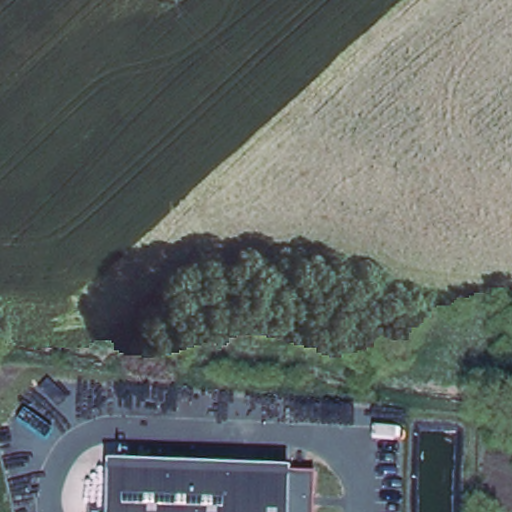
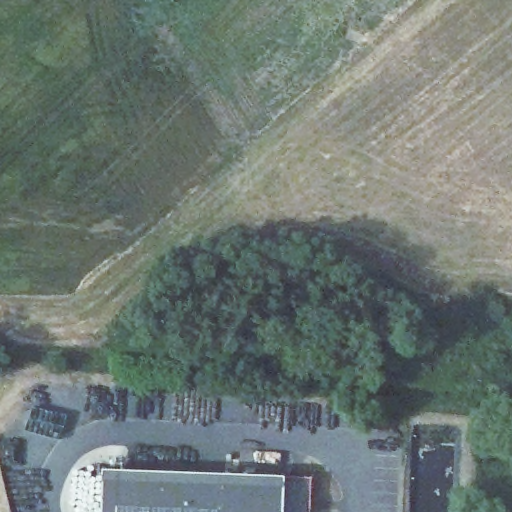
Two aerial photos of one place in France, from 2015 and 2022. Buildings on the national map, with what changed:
unchanged [(101,469),(285,479),(284,512),(99,512),(101,469)]
unchanged [(310,512),(284,512),(285,479),(311,479),(310,512)]

